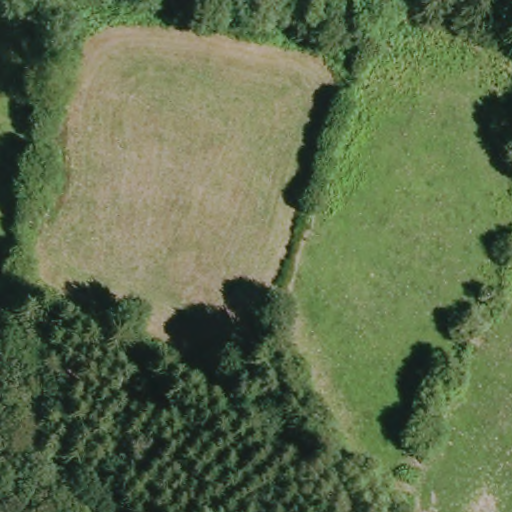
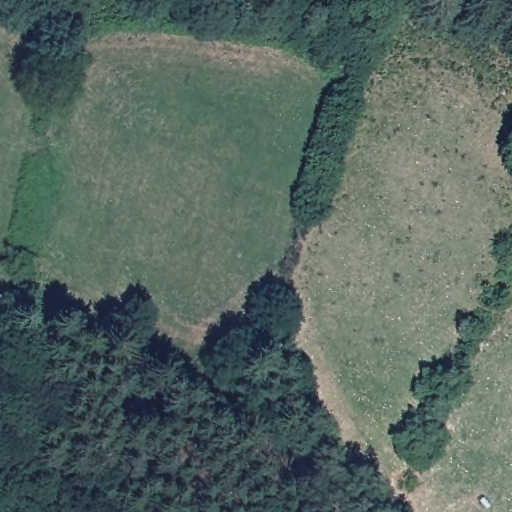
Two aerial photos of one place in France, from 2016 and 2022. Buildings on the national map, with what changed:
unchanged [(10,295),(8,335),(0,334),(0,295),(10,295)]

